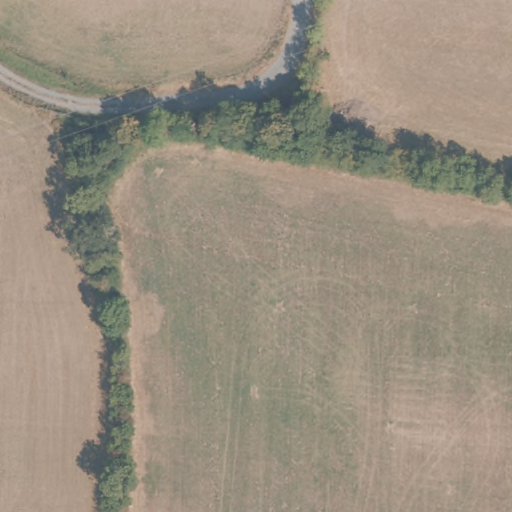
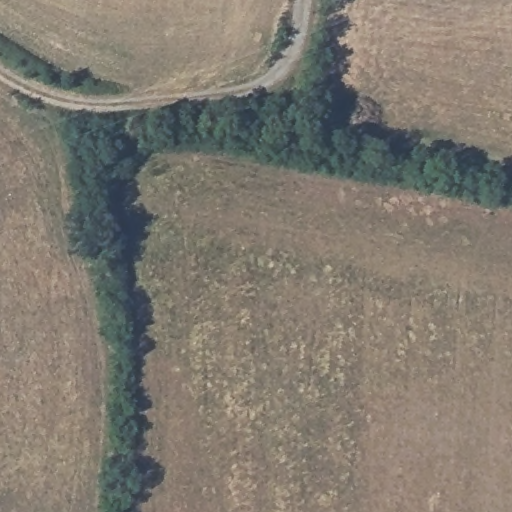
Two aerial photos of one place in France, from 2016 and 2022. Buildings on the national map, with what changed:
[]

